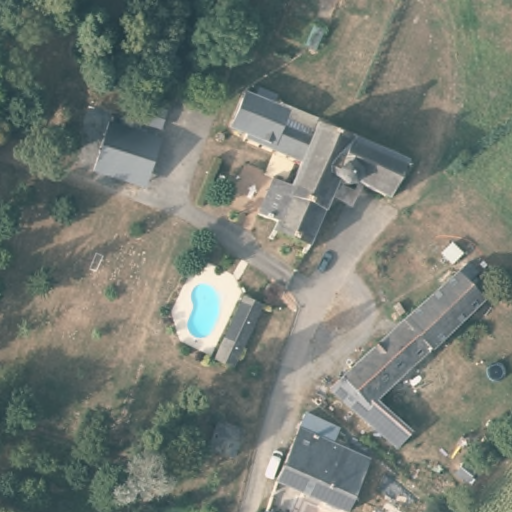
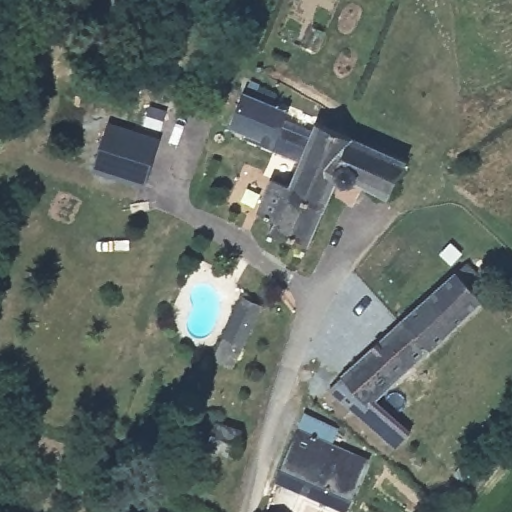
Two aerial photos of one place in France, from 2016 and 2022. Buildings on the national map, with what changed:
unchanged [(317,119),(407,157),(394,194),(364,183),(351,185),(337,176),(307,242),(258,218),(275,180),(291,186),(304,158),(235,127),(249,90),(317,119)]
unchanged [(144,187),(93,171),(108,122),(160,139),(144,187)]
unchanged [(378,401),(417,439),(411,446),(404,451),(334,383),(468,256),(484,271),(472,283),(484,296),(378,401)]
unchanged [(235,362),(215,353),(245,293),(264,302),(235,362)]
unchanged [(215,433),(188,424),(189,417),(178,414),(184,400),(194,403),(197,399),(222,406),(215,433)]
unchanged [(284,470),(304,411),(327,420),(323,435),(369,454),(349,507),(280,479),(284,470)]
unchanged [(268,510),(273,512),(267,512),(268,510)]

